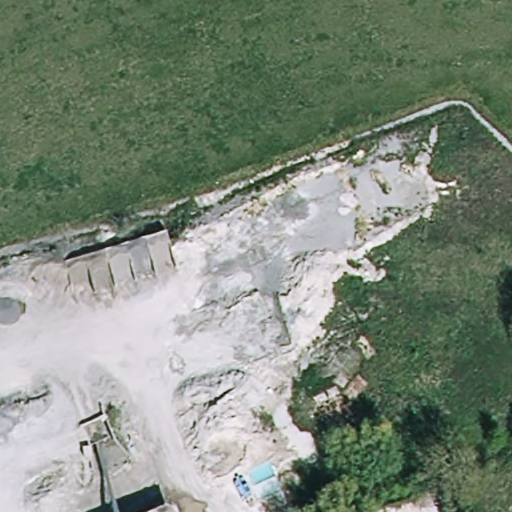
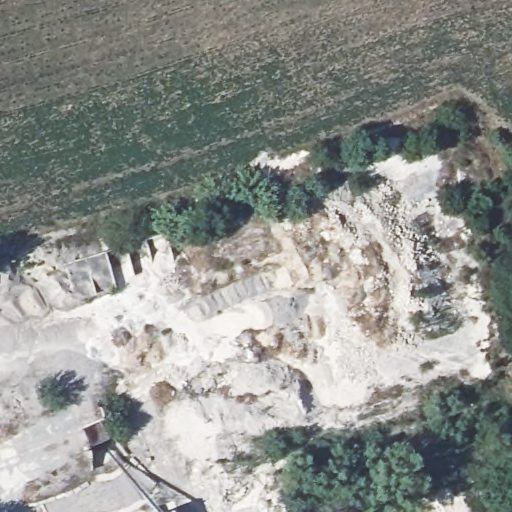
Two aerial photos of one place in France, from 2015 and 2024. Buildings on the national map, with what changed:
unchanged [(85,425),(111,415),(119,440),(92,447),(85,425)]
unchanged [(177,512),(157,512),(175,506),(177,512)]

